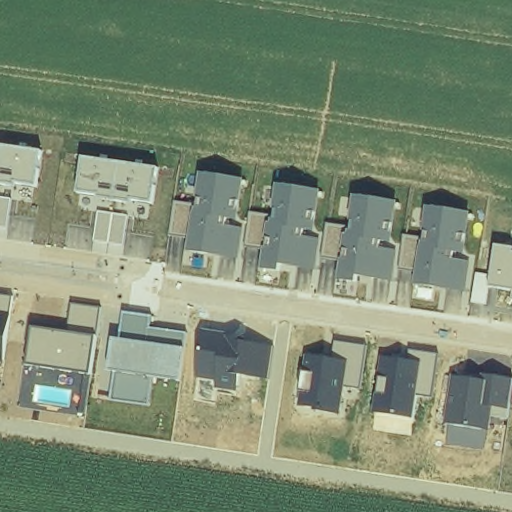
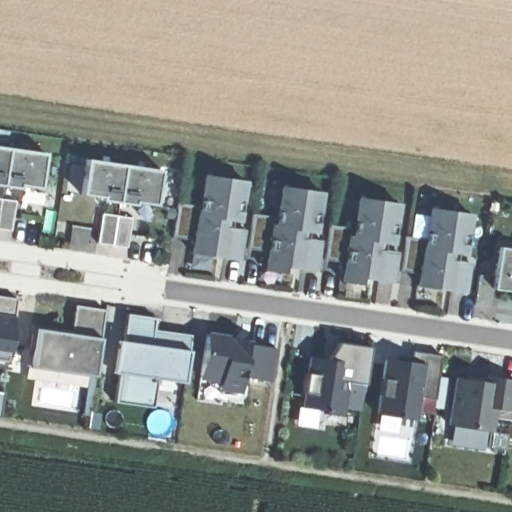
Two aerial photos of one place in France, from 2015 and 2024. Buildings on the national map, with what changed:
unchanged [(0,146),(45,153),(39,189),(0,184),(0,146)]
unchanged [(80,194),(87,159),(162,170),(157,206),(80,194)]
unchanged [(190,253),(192,238),(175,235),(179,202),(200,205),(205,174),(247,181),(240,221),(230,219),(228,227),(245,230),(242,260),(190,253)]
unchanged [(280,265),(280,270),(265,268),(268,249),(251,246),(257,212),(275,215),(280,186),(322,192),(317,232),(307,230),(305,237),(322,240),(319,271),(280,265)]
unchanged [(358,278),(357,282),(340,280),(342,259),(328,256),(332,225),(353,229),(358,196),(399,203),(393,242),(383,241),(382,250),(398,252),(395,282),(358,278)]
unchanged [(417,288),(420,270),(404,268),(408,237),(425,240),(430,209),(471,214),(467,253),(457,252),(455,259),(472,262),(467,294),(417,288)]
unchanged [(476,304),(480,276),(493,278),(497,246),(512,248),(512,290),(493,288),(490,306),(476,304)]
unchanged [(0,295),(17,297),(13,318),(7,361),(0,361),(0,295)]
unchanged [(31,363),(35,329),(72,334),(77,305),(103,308),(99,339),(92,374),(31,363)]
unchanged [(158,379),(153,407),(115,401),(118,373),(110,371),(117,341),(123,342),(128,312),(156,317),(154,329),(190,334),(187,351),(184,382),(158,379)]
unchanged [(242,377),(240,394),(218,390),(220,381),(200,378),(207,332),(230,335),(229,340),(277,347),(270,380),(242,377)]
unchanged [(346,388),(341,416),(302,409),(308,356),(337,359),(340,342),(370,347),(363,389),(346,388)]
unchanged [(420,395),(415,421),(377,413),(387,356),(411,360),(413,350),(440,354),(433,397),(420,395)]
unchanged [(492,417),(490,433),(447,425),(455,376),(486,381),(487,374),(512,378),(512,415),(512,418),(492,417)]

